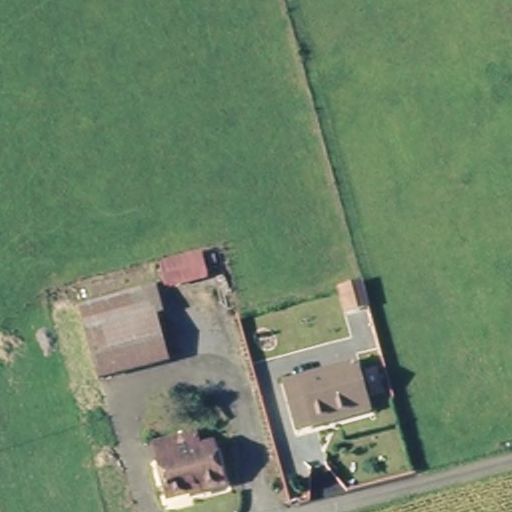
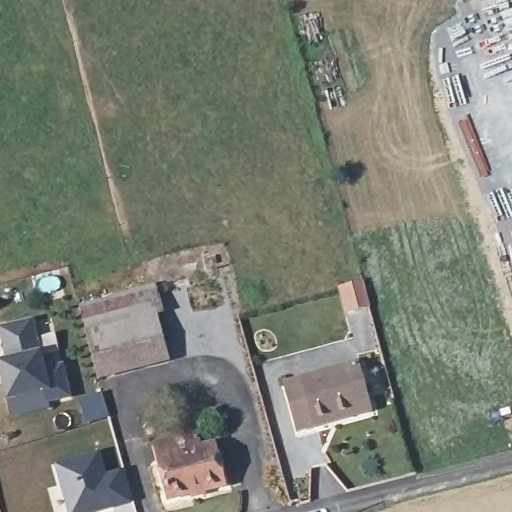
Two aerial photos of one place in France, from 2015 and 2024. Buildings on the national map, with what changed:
demolished [(209,279),(176,288),(169,264),(204,257),(209,279)]
unchanged [(372,311),(349,316),(342,290),(365,285),(372,311)]
unchanged [(85,308),(149,291),(168,360),(105,380),(85,308)]
new [(0,329),(0,326),(30,320),(42,369),(60,364),(68,394),(48,399),(45,389),(7,398),(0,366),(0,361),(7,360),(4,345),(0,329)]
unchanged [(337,423),(303,431),(292,384),(358,366),(370,403),(374,414),(337,423)]
new [(102,391),(109,417),(86,423),(78,397),(102,391)]
unchanged [(229,485),(175,501),(164,464),(160,447),(198,436),(203,453),(219,448),(229,485)]
new [(101,450),(108,472),(124,467),(137,512),(115,512),(114,507),(96,512),(68,512),(54,465),(101,450)]

